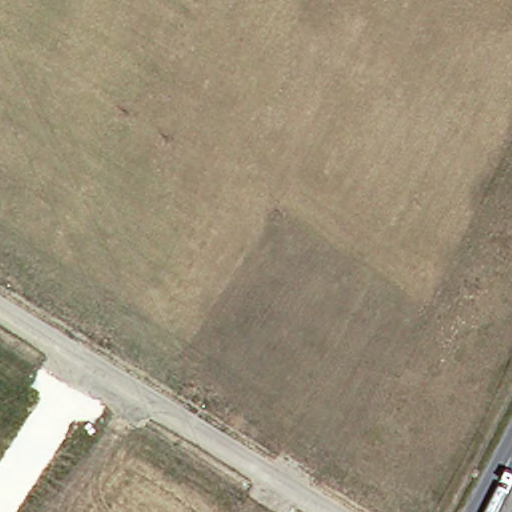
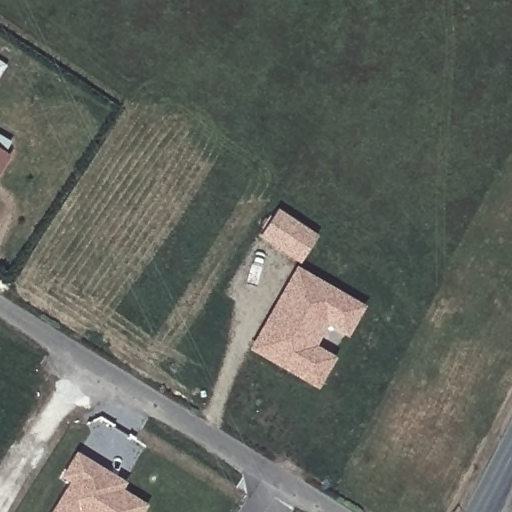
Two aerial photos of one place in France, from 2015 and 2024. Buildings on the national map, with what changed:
new [(0,173),(0,146),(12,153),(0,173)]
new [(280,210),(317,234),(301,259),(263,235),(280,210)]
new [(283,298),(300,268),(365,305),(350,331),(312,310),(298,336),(335,356),(320,384),(255,347),(272,317),(283,298)]
new [(121,491),(147,507),(144,512),(51,512),(67,484),(58,479),(75,452),(125,484),(121,491)]

